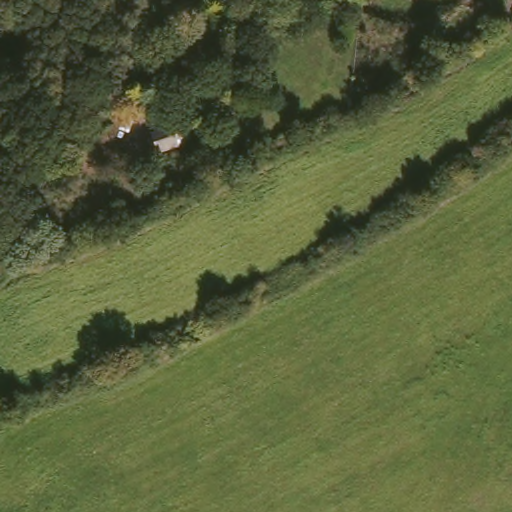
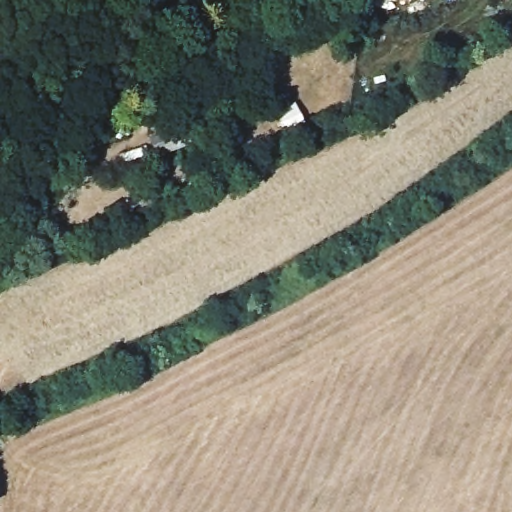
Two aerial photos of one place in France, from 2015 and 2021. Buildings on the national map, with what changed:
unchanged [(154,159),(149,136),(184,124),(192,146),(154,159)]

